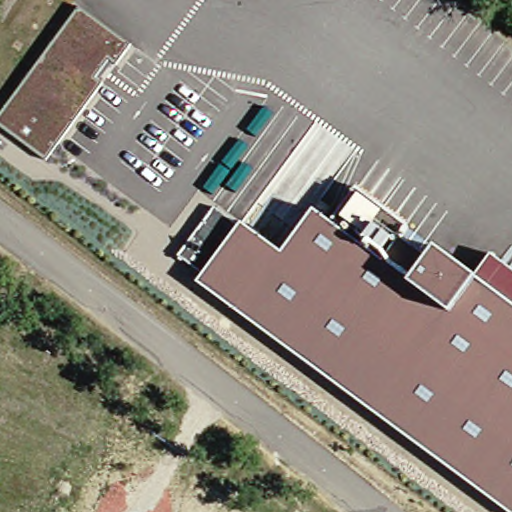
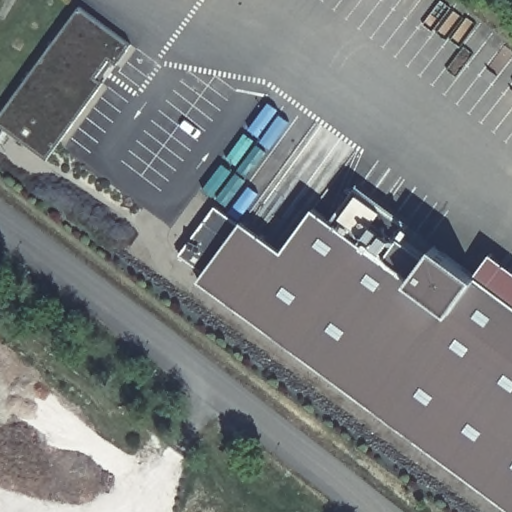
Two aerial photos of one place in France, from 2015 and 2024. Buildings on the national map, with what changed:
unchanged [(132,43),(116,63),(112,60),(99,78),(102,81),(45,157),(0,124),(0,109),(80,4),(132,43)]
unchanged [(215,209),(240,227),(242,224),(282,254),(314,211),(332,224),(358,189),(410,228),(402,239),(428,259),(437,248),(512,305),(512,512),(508,512),(198,282),(204,274),(180,255),(215,209)]

